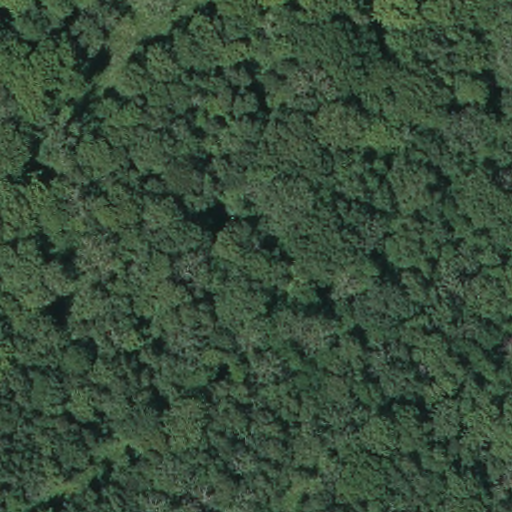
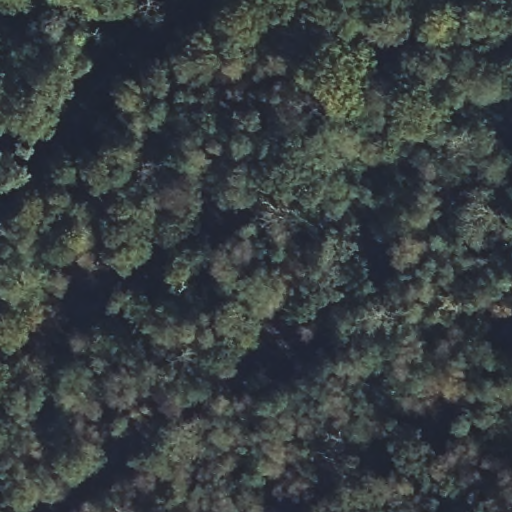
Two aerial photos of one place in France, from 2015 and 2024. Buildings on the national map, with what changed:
[]

